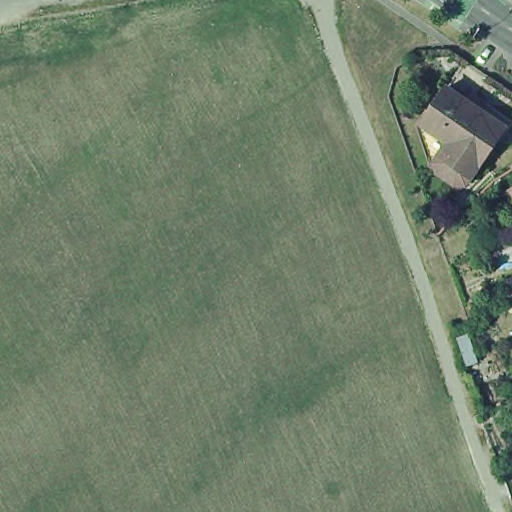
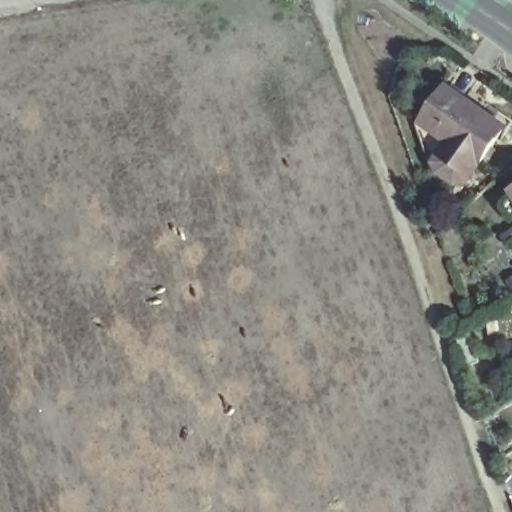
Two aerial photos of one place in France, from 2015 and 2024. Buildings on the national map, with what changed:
unchanged [(436,161),(437,152),(445,139),(417,122),(444,86),(502,125),(469,173),(460,178),(436,161)]

